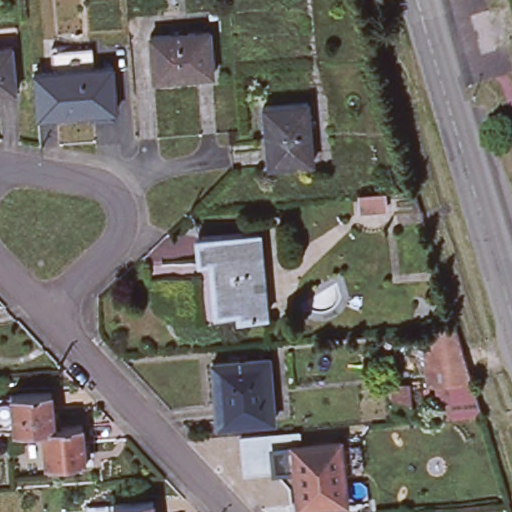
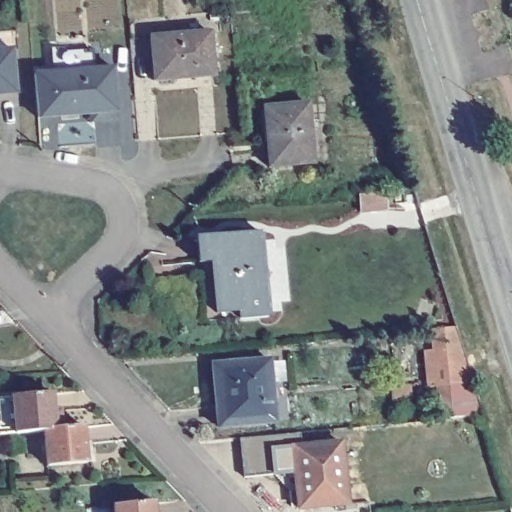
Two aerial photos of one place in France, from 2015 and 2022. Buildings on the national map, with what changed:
unchanged [(473,15),(501,4),(509,41),(480,50),(473,15)]
unchanged [(211,29),(215,74),(155,78),(151,34),(211,29)]
unchanged [(14,91),(0,93),(0,48),(10,47),(14,91)]
unchanged [(53,57),(91,53),(93,73),(112,71),(116,116),(58,121),(54,76),(53,57)]
unchanged [(308,103),(314,160),(271,165),(264,107),(308,103)]
unchanged [(385,189),(388,207),(343,211),(341,193),(385,189)]
unchanged [(214,311),(210,257),(199,258),(197,234),(258,228),(265,314),(238,316),(237,309),(214,311)]
unchanged [(420,353),(431,347),(427,327),(454,320),(482,409),(442,419),(420,353)]
unchanged [(267,355),(271,417),(216,421),(211,360),(267,355)]
unchanged [(9,392),(48,389),(51,425),(41,426),(36,426),(36,423),(29,424),(29,427),(13,428),(9,392)]
unchanged [(51,425),(80,422),(83,457),(45,461),(41,426),(51,425)]
unchanged [(338,439),(344,499),(298,503),(291,443),(338,439)]
unchanged [(111,501),(151,497),(152,512),(113,512),(111,501)]

